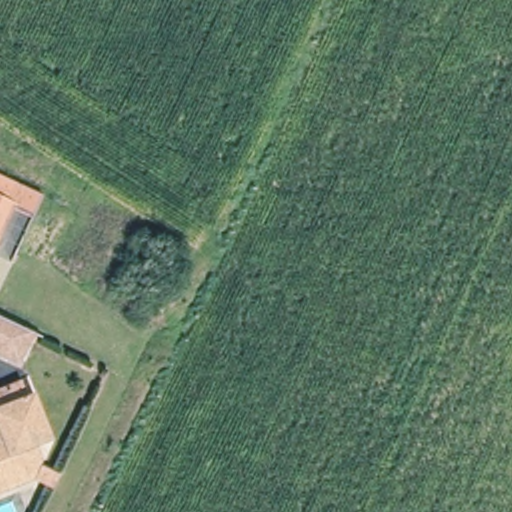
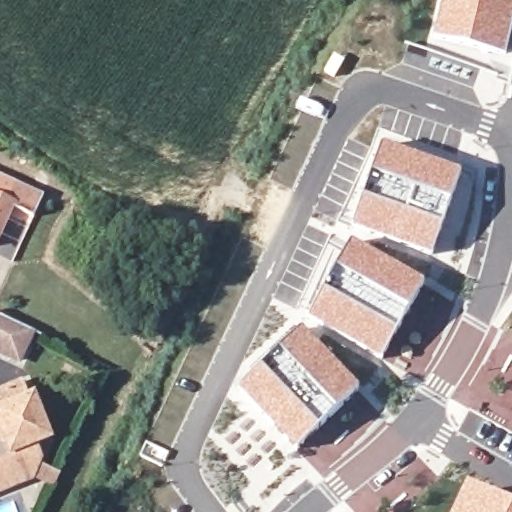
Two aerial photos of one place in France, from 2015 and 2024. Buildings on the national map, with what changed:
new [(512,0),(512,28),(505,56),(433,39),(443,0),(512,0)]
new [(353,226),(382,146),(461,175),(432,254),(353,226)]
unchanged [(44,191),(33,217),(12,206),(0,234),(0,171),(44,191)]
new [(381,357),(310,317),(350,242),(425,285),(381,357)]
unchanged [(7,349),(0,346),(0,314),(17,322),(33,328),(22,356),(7,349)]
new [(295,448),(240,387),(301,328),(356,388),(295,448)]
unchanged [(2,448),(0,441),(0,395),(8,392),(20,388),(25,406),(30,405),(44,440),(28,447),(34,461),(17,483),(0,490),(0,449),(2,448)]
new [(466,485),(512,506),(512,512),(453,512),(466,485)]

